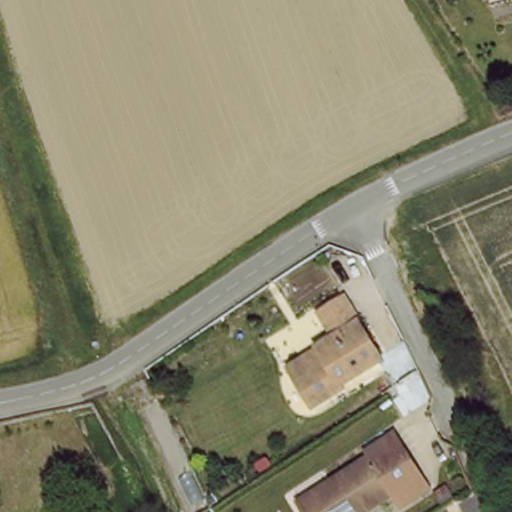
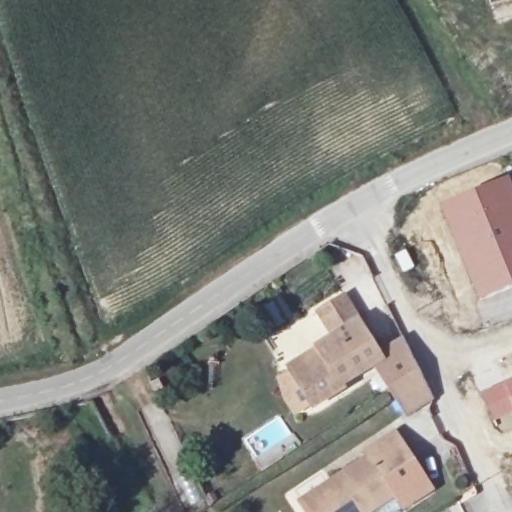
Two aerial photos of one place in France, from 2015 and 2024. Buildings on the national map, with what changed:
new [(508,177),(512,185),(512,288),(479,302),(439,206),(508,177)]
unchanged [(386,354),(344,382),(347,386),(318,404),(292,363),(321,344),(319,340),(335,330),(320,308),(346,292),(362,318),(386,354)]
new [(492,421),(479,391),(512,378),(512,414),(492,421)]
unchanged [(344,512),(310,512),(300,497),(330,477),(327,471),(365,445),(361,440),(388,421),(406,448),(380,465),(390,481),(344,512)]

